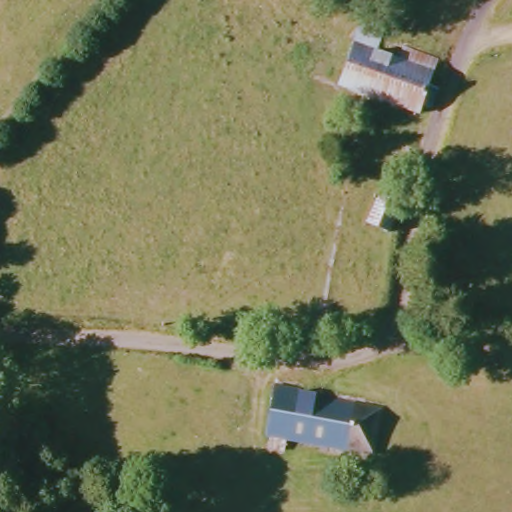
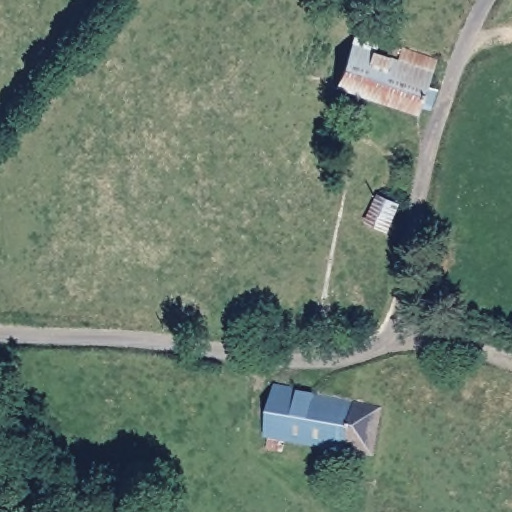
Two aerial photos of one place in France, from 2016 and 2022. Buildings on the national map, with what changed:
unchanged [(415,111),(337,84),(353,43),(356,35),(380,44),(379,53),(406,62),(410,55),(433,63),(415,111)]
unchanged [(350,224),(362,199),(385,209),(372,235),(350,224)]
unchanged [(298,349),(298,334),(315,335),(314,350),(298,349)]
unchanged [(282,437),(280,450),(264,446),(267,434),(265,433),(273,386),(377,407),(370,456),(282,437)]

